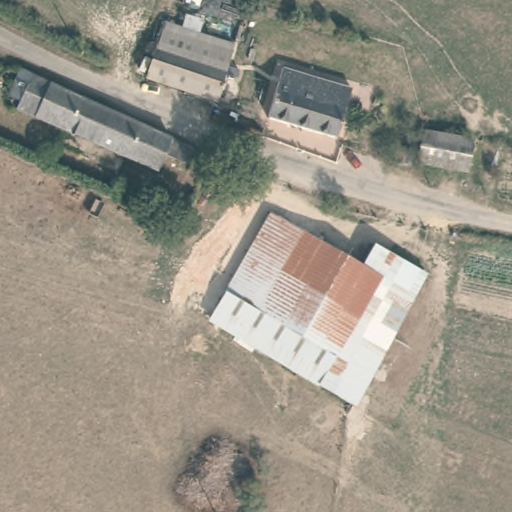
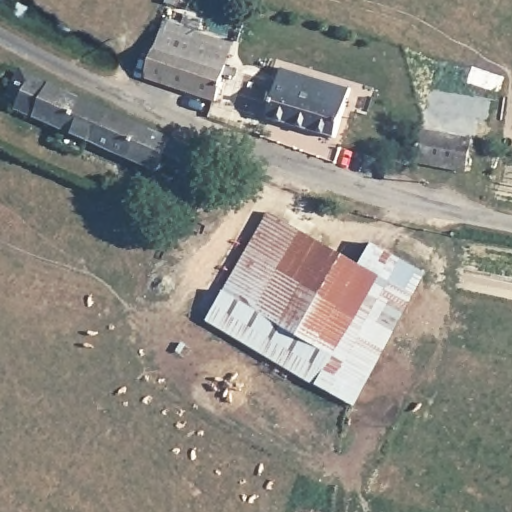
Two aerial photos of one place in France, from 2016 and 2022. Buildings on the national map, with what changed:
unchanged [(156,45),(164,23),(235,43),(228,66),(156,45)]
unchanged [(217,100),(145,78),(156,45),(228,66),(217,100)]
unchanged [(183,159),(160,149),(150,164),(10,104),(18,79),(9,76),(12,64),(17,64),(190,144),(183,159)]
unchanged [(340,135),(268,117),(285,67),(354,86),(340,135)]
unchanged [(422,163),(428,130),(465,138),(477,139),(476,149),(471,172),(422,163)]
unchanged [(413,163),(399,162),(401,148),(417,149),(413,163)]
unchanged [(211,317),(270,214),(315,239),(255,344),(211,317)]
unchanged [(354,405),(255,344),(315,239),(413,297),(354,405)]

